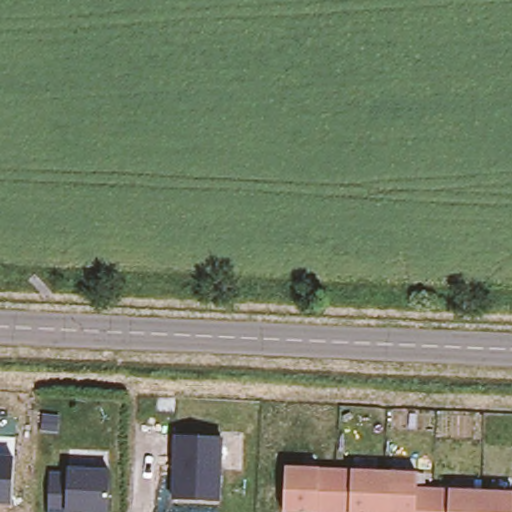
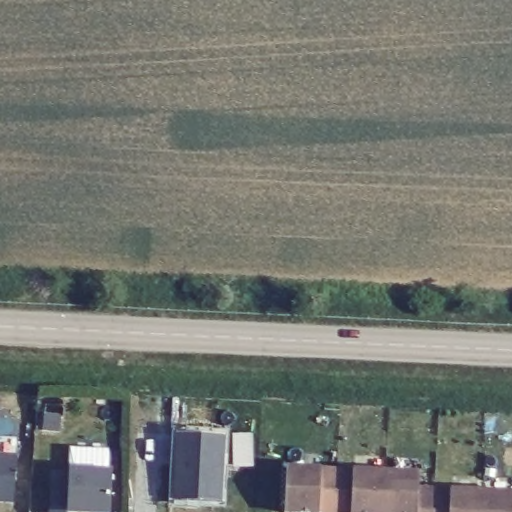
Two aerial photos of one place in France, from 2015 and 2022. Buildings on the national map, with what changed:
unchanged [(222,438),(221,502),(175,501),(178,437),(222,438)]
unchanged [(9,504),(0,504),(0,455),(13,455),(9,504)]
unchanged [(50,511),(51,470),(69,470),(69,465),(111,467),(110,509),(68,508),(68,512),(50,511)]
unchanged [(286,467),(321,468),(336,469),(352,469),(385,471),(384,512),(296,512),(284,511),(286,467)]
unchanged [(419,472),(418,488),(434,488),(450,489),(483,490),(482,512),(384,512),(385,471),(419,472)]
unchanged [(512,492),(512,512),(482,512),(483,490),(512,492)]

